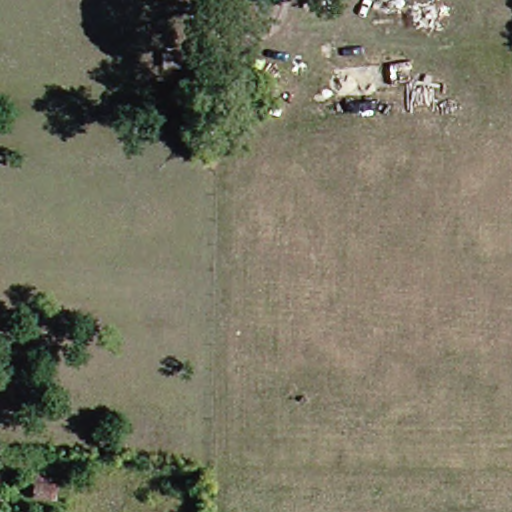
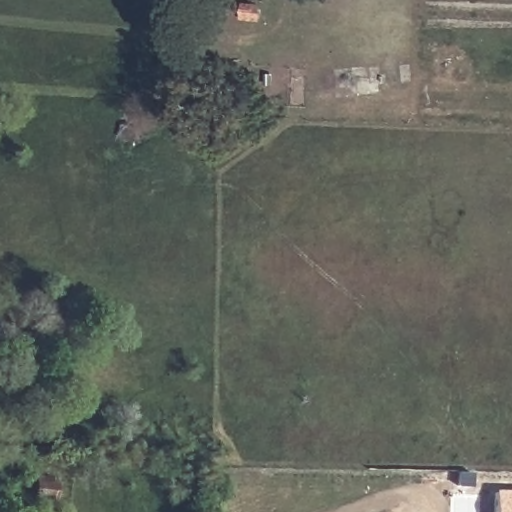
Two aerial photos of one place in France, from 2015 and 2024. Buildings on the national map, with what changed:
new [(512,490),(512,512),(495,512),(495,489),(512,490)]

